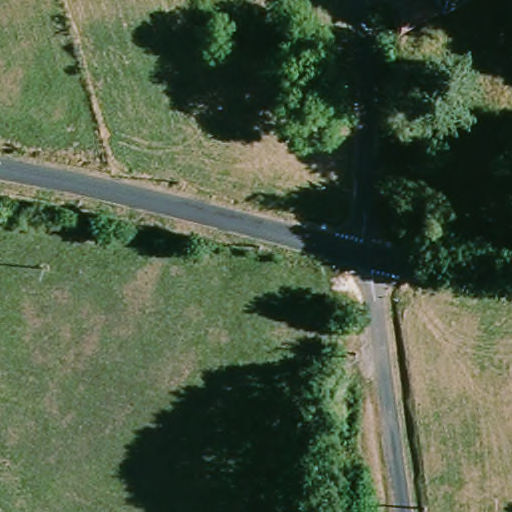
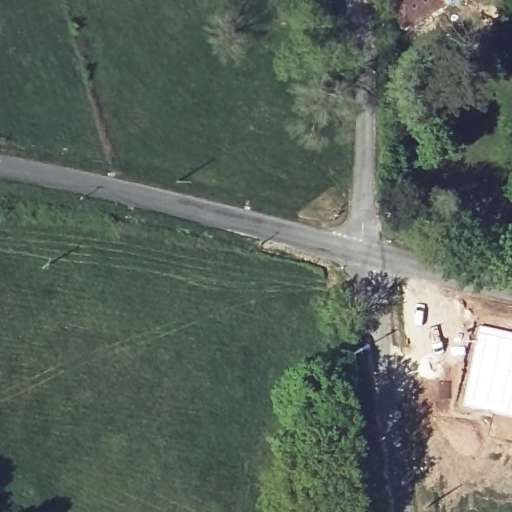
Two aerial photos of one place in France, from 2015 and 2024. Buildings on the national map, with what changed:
unchanged [(405,29),(391,0),(460,0),(405,29)]
new [(512,331),(512,418),(460,406),(478,324),(512,331)]

